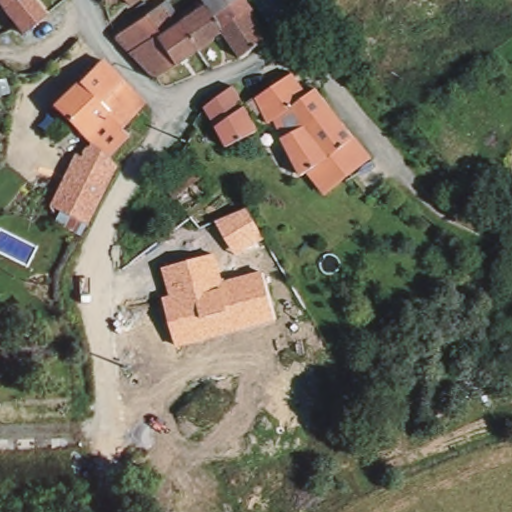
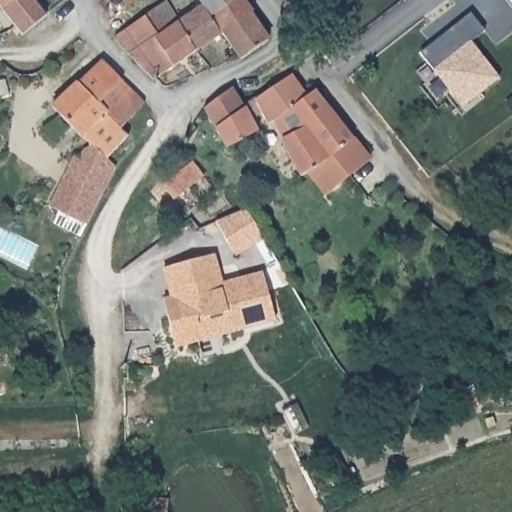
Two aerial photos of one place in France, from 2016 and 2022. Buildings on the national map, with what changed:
unchanged [(9,8),(3,0),(34,0),(46,19),(24,33),(9,8)]
unchanged [(117,9),(110,0),(139,0),(125,12),(117,9)]
unchanged [(207,4),(204,0),(250,0),(257,10),(255,13),(273,39),(245,59),(236,46),(225,31),(201,49),(177,65),(149,16),(172,0),(180,15),(184,21),(207,4)]
new [(470,14),(484,31),(471,42),(498,78),(462,107),(420,53),(470,14)]
unchanged [(149,16),(177,65),(157,79),(120,37),(149,16)]
unchanged [(77,154),(86,156),(94,145),(57,106),(80,83),(85,84),(107,60),(148,104),(129,131),(135,139),(113,158),(120,164),(95,225),(56,207),(77,154)]
unchanged [(268,125),(264,117),(254,122),(257,129),(227,144),(206,104),(216,97),(235,83),(247,104),(257,96),(260,94),(292,70),(303,85),(307,90),(317,85),(342,120),(368,154),(325,188),(309,168),(302,169),(274,123),(268,125)]
unchanged [(199,170),(171,194),(159,179),(187,156),(199,170)]
unchanged [(247,209),(265,239),(235,256),(215,222),(247,209)]
unchanged [(224,281),(263,272),(276,323),(176,349),(162,298),(171,296),(163,267),(216,253),(224,281)]

